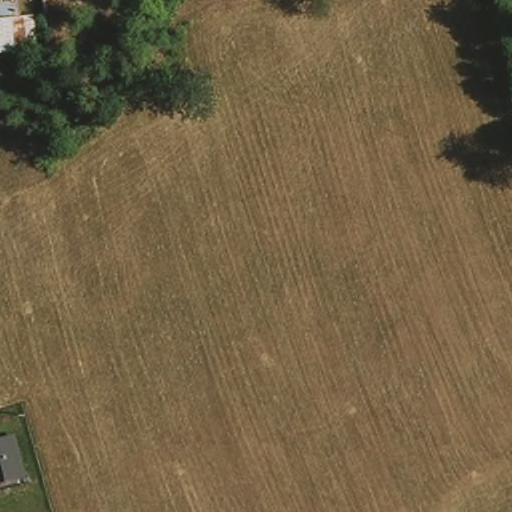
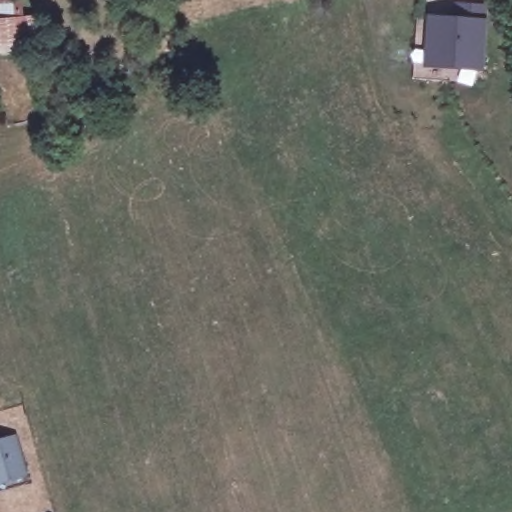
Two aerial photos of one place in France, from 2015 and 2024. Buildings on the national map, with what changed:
unchanged [(76,11),(73,0),(107,0),(108,7),(76,11)]
new [(423,68),(428,16),(458,17),(457,3),(488,5),(488,20),(484,73),(423,68)]
unchanged [(15,5),(17,21),(30,20),(35,52),(0,56),(0,7),(15,5)]
unchanged [(12,429),(21,465),(1,471),(0,469),(0,432),(12,429)]

